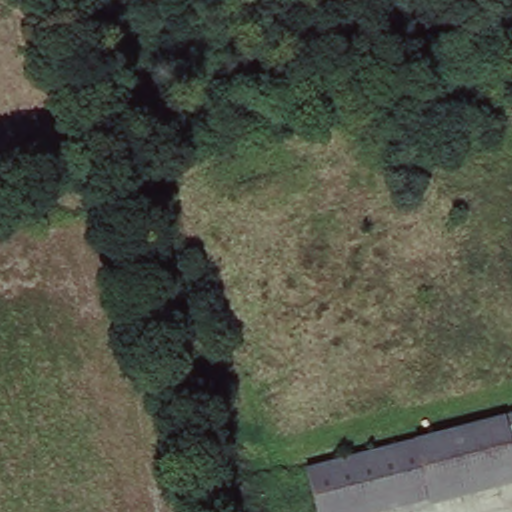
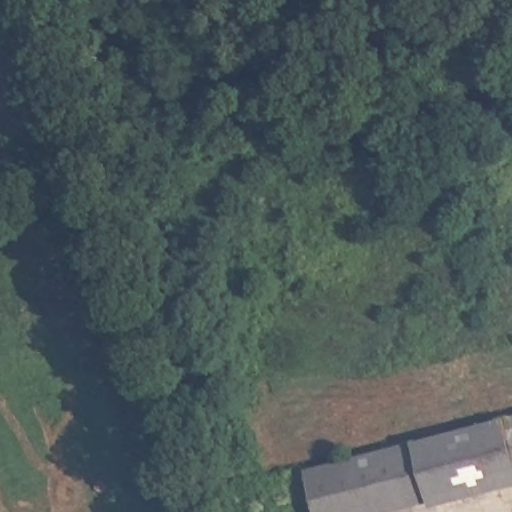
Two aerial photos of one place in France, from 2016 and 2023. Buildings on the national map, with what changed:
unchanged [(512,474),(385,512),(318,512),(307,478),(512,418),(512,474)]

